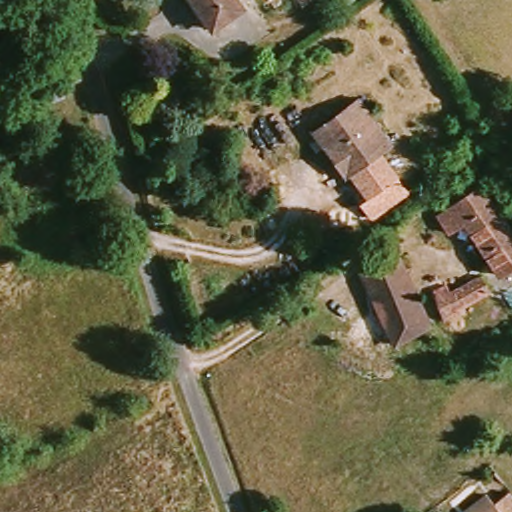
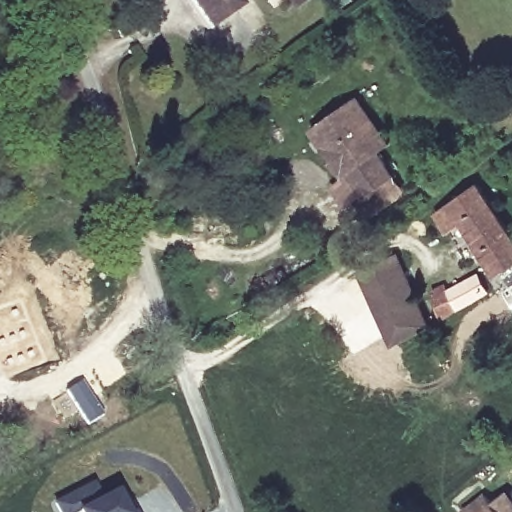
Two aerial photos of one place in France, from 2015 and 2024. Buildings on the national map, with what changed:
unchanged [(210,32),(188,0),(237,0),(243,9),(210,32)]
unchanged [(317,9),(310,0),(328,0),(328,1),(317,9)]
unchanged [(326,127),(324,124),(360,100),(366,109),(390,145),(371,158),(389,182),(367,197),(363,199),(347,172),(342,177),(310,129),(320,122),(349,171),(350,169),(326,127)]
unchanged [(475,189),(512,236),(512,275),(503,282),(460,224),(445,235),(433,218),(475,189)]
unchanged [(363,271),(397,257),(429,332),(395,350),(363,271)]
unchanged [(488,292),(444,317),(436,291),(450,283),(455,290),(481,277),(488,292)]
new [(83,377),(106,412),(88,425),(65,390),(83,377)]
new [(96,481),(104,497),(121,490),(128,503),(131,502),(137,512),(59,512),(53,502),(96,481)]
unchanged [(486,500),(492,508),(508,496),(512,500),(512,512),(467,512),(480,502),(486,500)]

